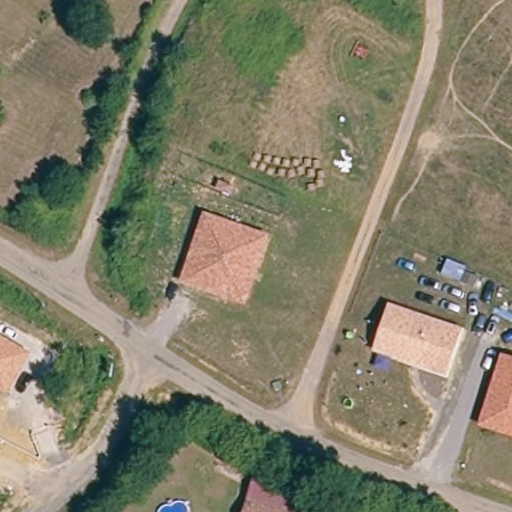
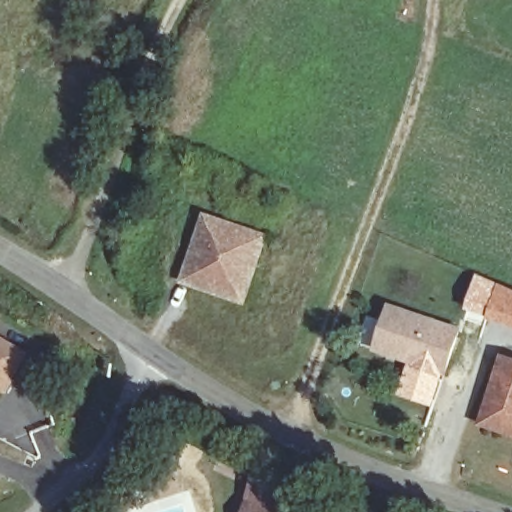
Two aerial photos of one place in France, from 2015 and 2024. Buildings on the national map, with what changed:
unchanged [(270,234),(246,304),(180,282),(204,213),(270,234)]
new [(464,312),(475,273),(498,282),(512,288),(512,328),(485,319),(464,312)]
unchanged [(389,355),(398,325),(385,319),(389,306),(459,329),(445,371),(389,355)]
unchanged [(31,353),(7,395),(0,391),(0,335),(31,353)]
unchanged [(512,438),(478,427),(500,354),(512,357),(512,438)]
unchanged [(257,478),(321,502),(317,512),(280,512),(248,500),(257,478)]
unchanged [(259,512),(250,512),(251,509),(259,512)]

